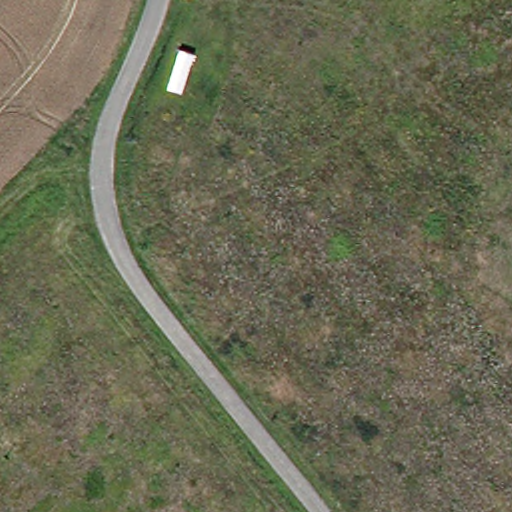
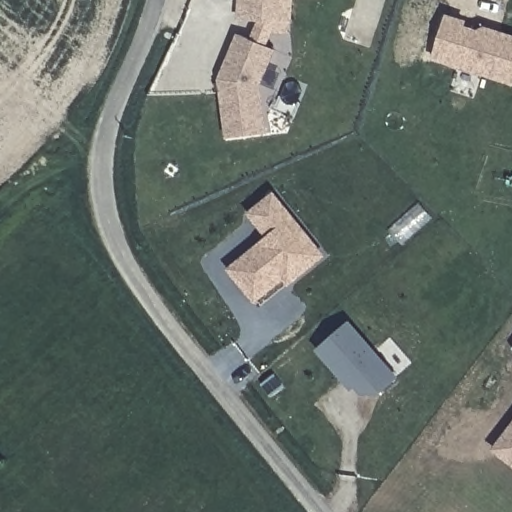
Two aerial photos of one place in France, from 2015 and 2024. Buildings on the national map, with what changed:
new [(255,41),(266,21),(241,19),(242,0),(293,0),(292,23),(291,31),(273,31),(265,47),(272,50),(254,86),(260,135),(222,139),(215,80),(237,33),(255,41)]
new [(466,23),(464,28),(490,36),(492,31),(512,38),(512,84),(433,59),(447,17),(466,23)]
new [(286,284),(282,279),(253,302),(227,270),(266,238),(247,214),(271,194),(306,237),(321,256),(286,284)]
new [(348,323),(395,377),(378,393),(361,391),(347,374),(342,378),(317,350),(348,323)]
new [(512,460),(494,445),(512,423),(512,460)]

